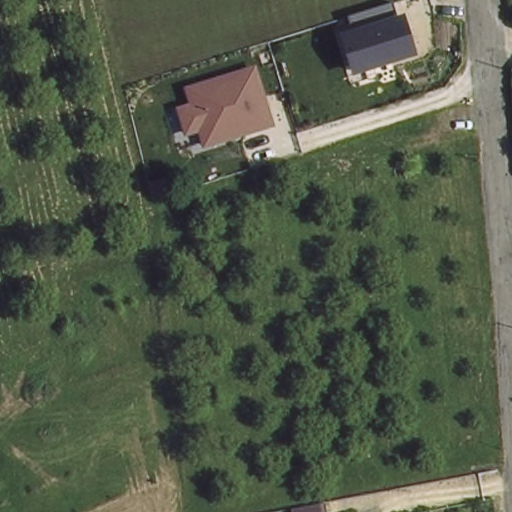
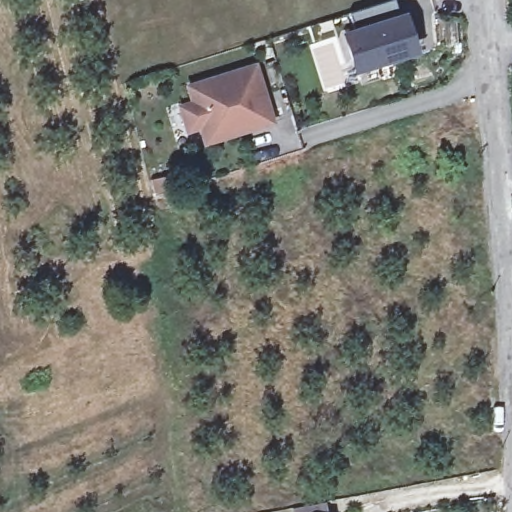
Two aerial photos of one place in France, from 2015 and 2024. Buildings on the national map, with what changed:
unchanged [(355,75),(341,31),(353,27),(348,14),(395,0),(398,15),(406,12),(419,55),(355,75)]
unchanged [(203,148),(198,132),(186,136),(176,104),(189,101),(184,83),(257,63),(276,126),(203,148)]
unchanged [(328,512),(301,512),(327,507),(328,512)]

